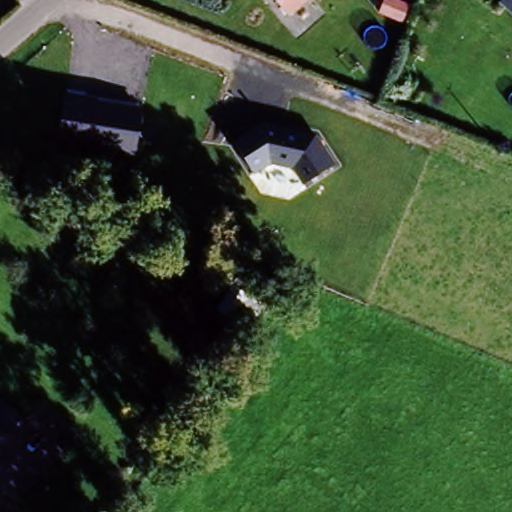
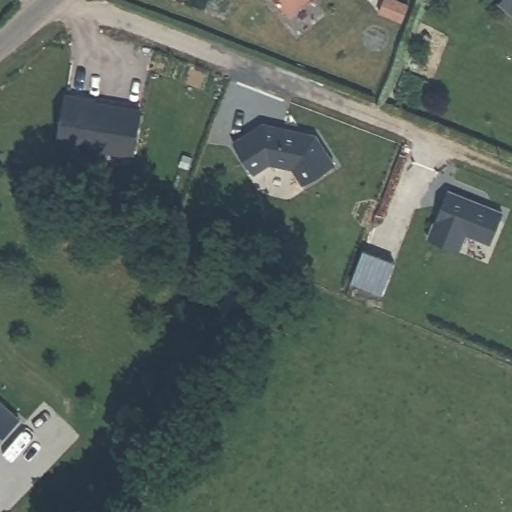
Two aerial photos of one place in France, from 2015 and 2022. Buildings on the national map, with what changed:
unchanged [(291,20),(272,0),(316,0),(291,20)]
unchanged [(505,0),(512,0),(512,20),(498,8),(505,0)]
unchanged [(56,141),(66,95),(145,110),(135,156),(56,141)]
unchanged [(235,144),(263,125),(316,134),(335,164),(304,184),(294,167),(271,164),(253,174),(235,144)]
new [(448,191),(503,213),(491,244),(466,234),(459,251),(429,239),(448,191)]
new [(363,251),(395,265),(383,295),(351,281),(363,251)]
unchanged [(217,349),(190,380),(169,362),(196,330),(217,349)]
unchanged [(13,424),(0,438),(0,412),(13,424)]

